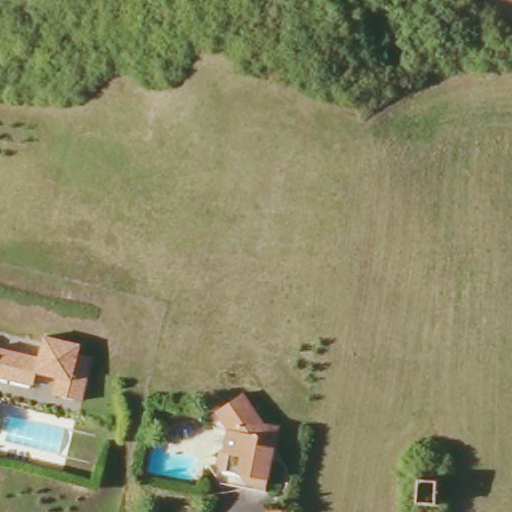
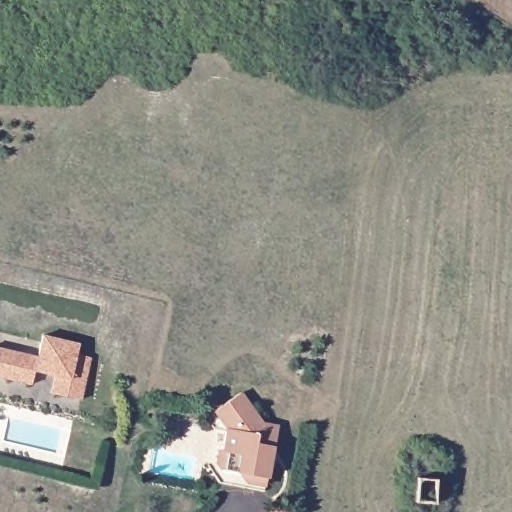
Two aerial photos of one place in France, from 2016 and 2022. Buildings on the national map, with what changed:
unchanged [(35,355),(40,335),(75,343),(75,350),(89,354),(80,398),(50,390),(53,374),(34,369),(30,384),(0,376),(0,348),(35,355)]
unchanged [(219,477),(206,456),(215,452),(217,443),(220,443),(226,421),(214,401),(238,383),(262,417),(275,418),(263,478),(261,485),(219,477)]

